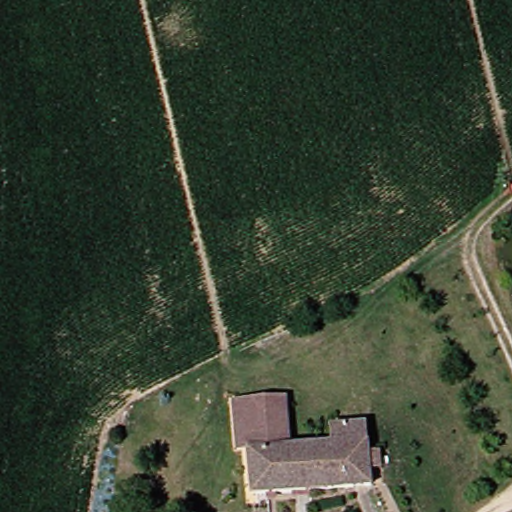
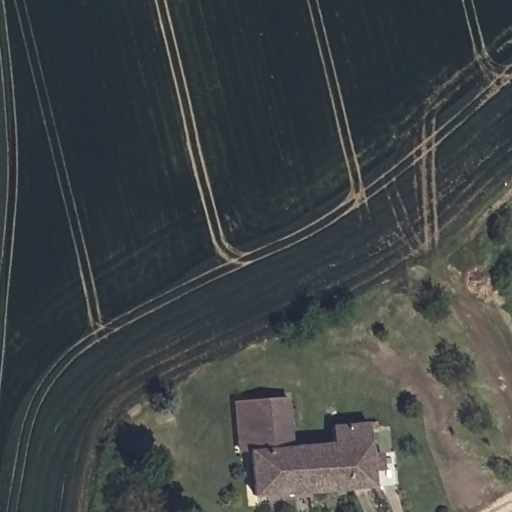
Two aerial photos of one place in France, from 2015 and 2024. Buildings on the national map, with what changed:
unchanged [(254,445),(255,398),(293,398),(292,440),(342,441),(342,424),(380,426),(380,458),(400,462),(400,478),(380,477),(380,491),(257,490),(254,445)]

